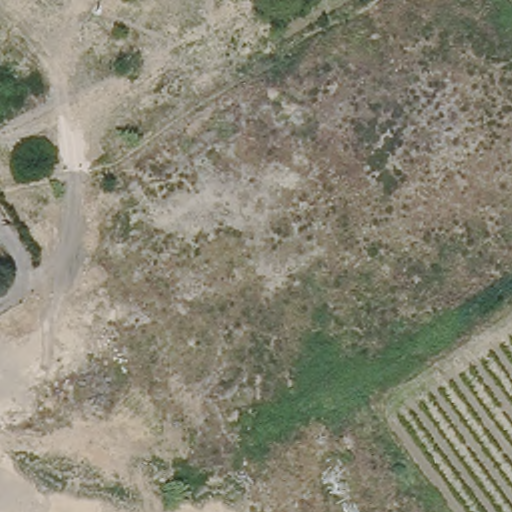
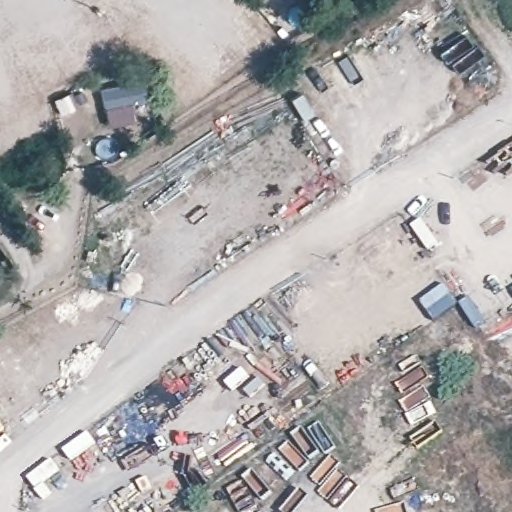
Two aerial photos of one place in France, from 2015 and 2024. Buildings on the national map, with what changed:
new [(142,80),(146,99),(130,103),(134,122),(108,128),(100,89),(142,80)]

